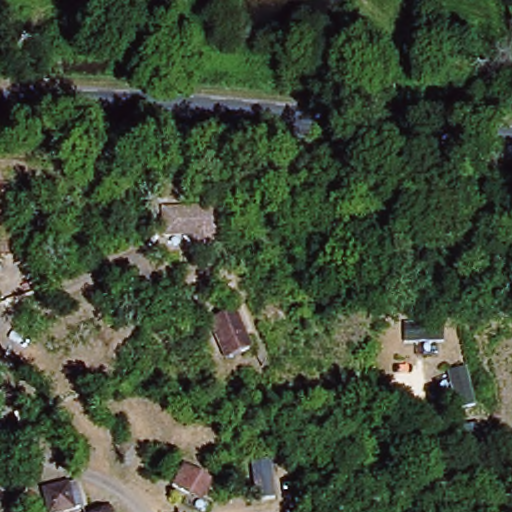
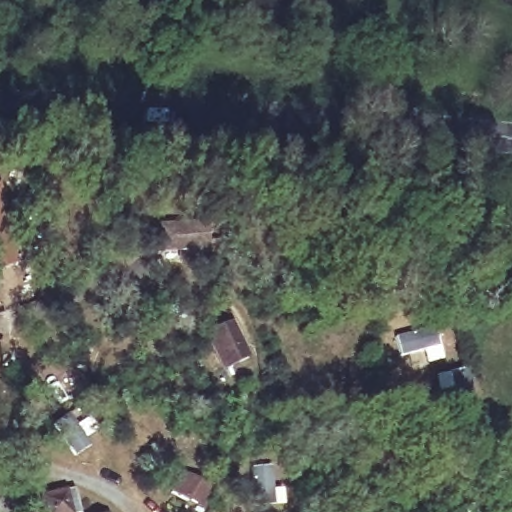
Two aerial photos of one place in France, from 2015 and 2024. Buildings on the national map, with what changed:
unchanged [(205,240),(217,240),(217,260),(188,262),(186,251),(167,251),(159,252),(156,226),(164,225),(203,223),(205,240)]
unchanged [(13,263),(0,270),(0,229),(13,263)]
unchanged [(401,319),(442,319),(442,346),(402,347),(401,319)]
unchanged [(232,320),(247,357),(221,368),(205,331),(232,320)]
unchanged [(447,373),(466,369),(477,410),(460,414),(447,373)]
unchanged [(462,430),(481,427),(488,468),(469,470),(462,430)]
unchanged [(170,496),(182,474),(199,483),(211,490),(200,512),(199,512),(170,496)]
unchanged [(65,489),(69,512),(37,512),(33,495),(65,489)]
unchanged [(478,494),(499,490),(503,512),(482,512),(478,494)]
unchanged [(96,511),(97,512),(95,512),(96,511)]

